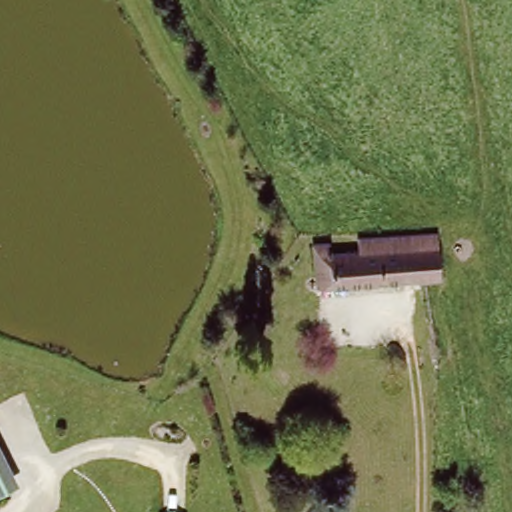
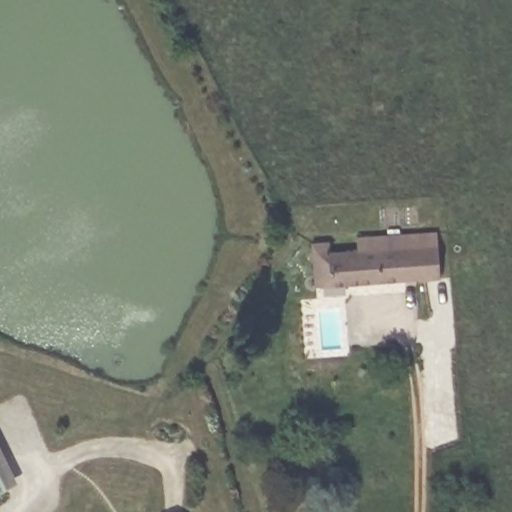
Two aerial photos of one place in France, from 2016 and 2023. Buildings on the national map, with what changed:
unchanged [(320,246),(332,245),(332,237),(428,233),(435,277),(417,278),(332,281),(314,270),(312,238),(320,238),(320,246)]
unchanged [(9,491),(0,496),(0,474),(9,491)]

